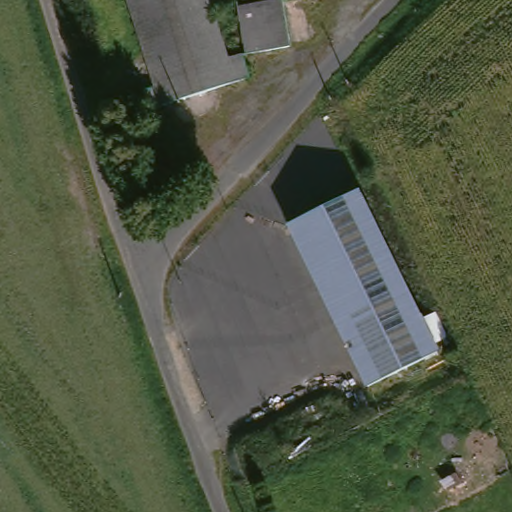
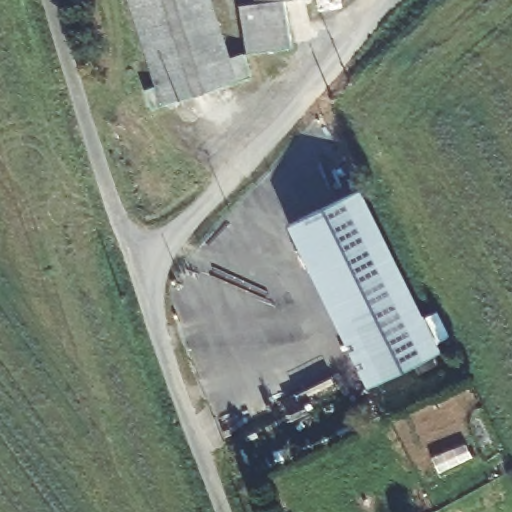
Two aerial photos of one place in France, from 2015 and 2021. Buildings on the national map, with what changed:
unchanged [(161,106),(127,0),(205,0),(224,63),(246,55),(253,75),(231,83),(161,106)]
unchanged [(286,50),(246,55),(241,9),(253,7),(252,0),(303,0),(280,4),(286,50)]
unchanged [(434,357),(363,391),(284,227),(354,193),(434,357)]

